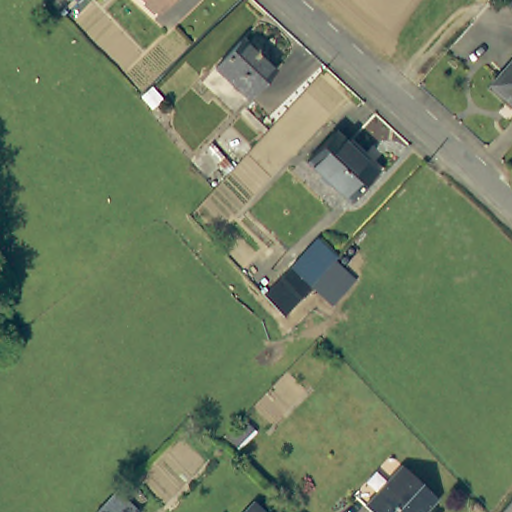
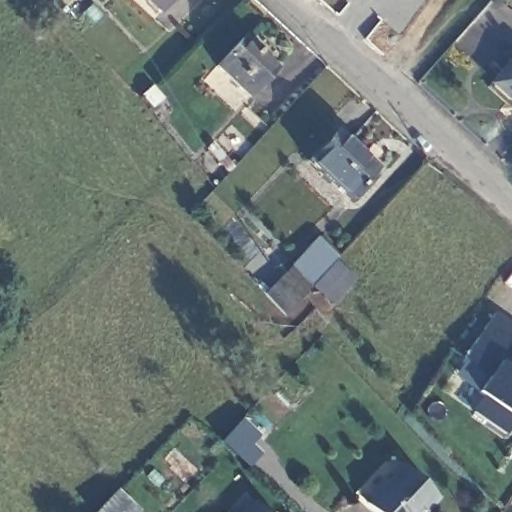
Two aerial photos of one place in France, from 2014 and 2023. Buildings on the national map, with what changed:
unchanged [(171,0),(160,12),(145,0),(171,0)]
demolished [(332,6),(337,0),(390,0),(363,31),(332,6)]
unchanged [(512,0),(512,12),(498,0),(512,0)]
unchanged [(211,62),(237,33),(270,64),(244,92),(211,62)]
unchanged [(512,59),(512,97),(494,80),(512,59)]
unchanged [(342,137),(347,132),(376,160),(367,169),(343,195),(302,156),(330,126),(342,137)]
unchanged [(227,172),(219,164),(207,150),(209,146),(212,142),(226,158),(233,166),(227,172)]
unchanged [(291,260),(318,232),(337,252),(312,280),(291,260)]
unchanged [(336,255),(356,273),(332,300),(312,281),(336,255)]
unchanged [(284,311),(264,289),(291,260),(312,280),(284,311)]
new [(512,413),(511,415),(512,416),(512,421),(503,435),(472,413),(485,397),(479,392),(489,379),(463,357),(495,313),(512,325),(512,413)]
unchanged [(228,435),(246,419),(255,430),(236,446),(228,435)]
unchanged [(364,505),(353,494),(391,454),(402,465),(438,498),(424,512),(423,512),(420,509),(417,512),(372,512),(364,505)]
unchanged [(118,490),(139,511),(138,512),(96,512),(118,490)]
unchanged [(255,501),(266,512),(245,512),(255,501)]

